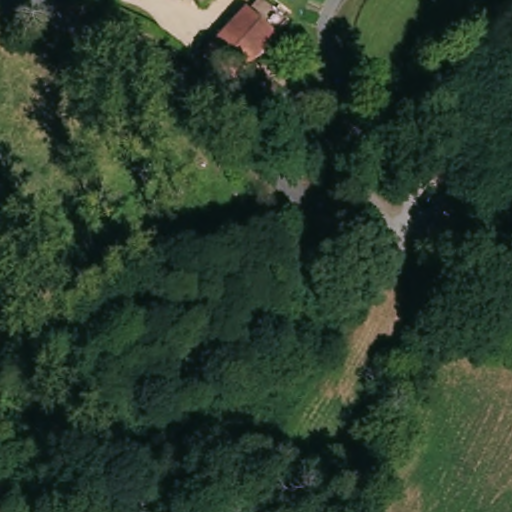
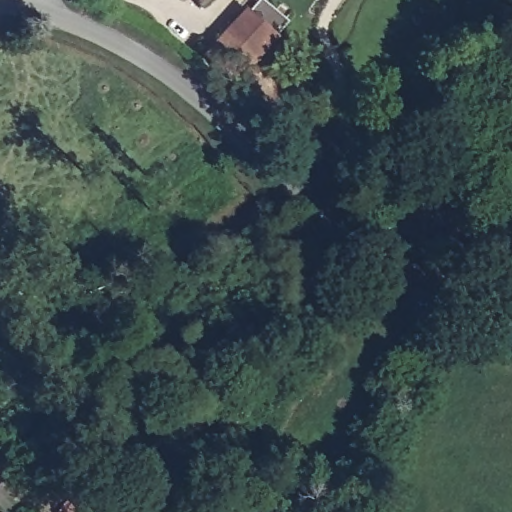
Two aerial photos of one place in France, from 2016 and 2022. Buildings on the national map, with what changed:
unchanged [(196,0),(210,0),(201,7),(196,0)]
unchanged [(239,83),(206,52),(247,8),(280,40),(276,45),(284,53),(275,65),(265,57),(264,58),(239,83)]
unchanged [(91,477),(70,505),(45,490),(66,462),(91,477)]

